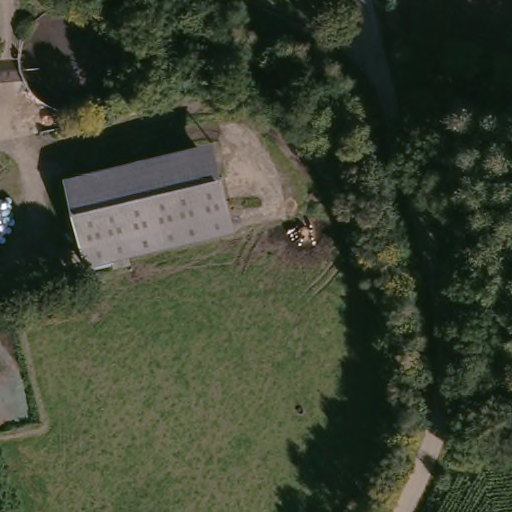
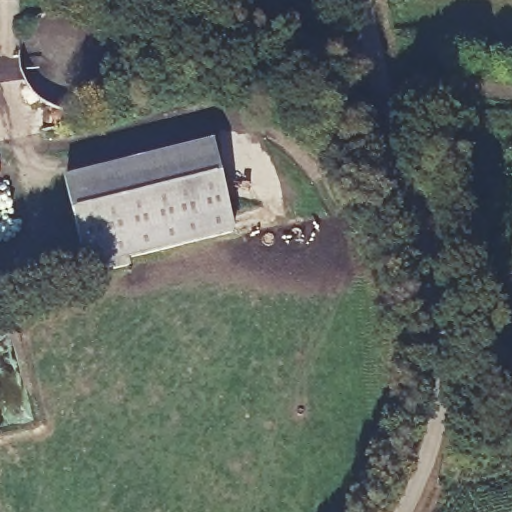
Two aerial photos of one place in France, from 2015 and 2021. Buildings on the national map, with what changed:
unchanged [(62,184),(208,147),(232,234),(82,271),(62,184)]

